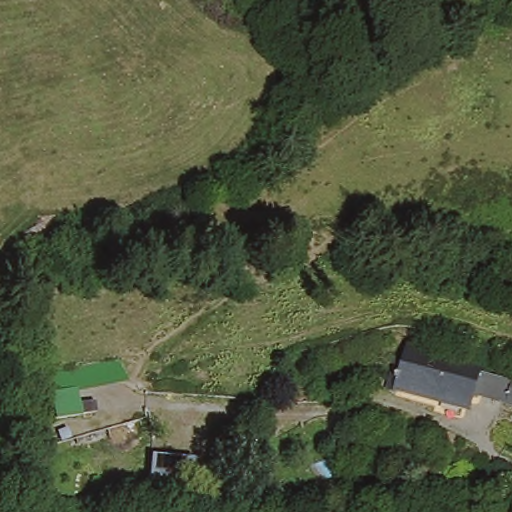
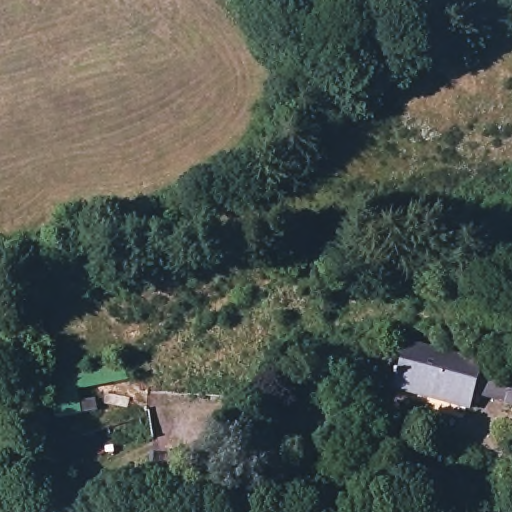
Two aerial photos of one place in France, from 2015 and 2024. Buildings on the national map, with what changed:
unchanged [(483,360),(471,412),(393,394),(408,340),(483,360)]
unchanged [(123,364),(127,379),(81,391),(82,400),(96,398),(98,414),(56,422),(48,374),(123,364)]
unchanged [(512,387),(512,407),(506,405),(512,387)]
unchanged [(153,453),(198,455),(197,492),(152,491),(153,453)]

